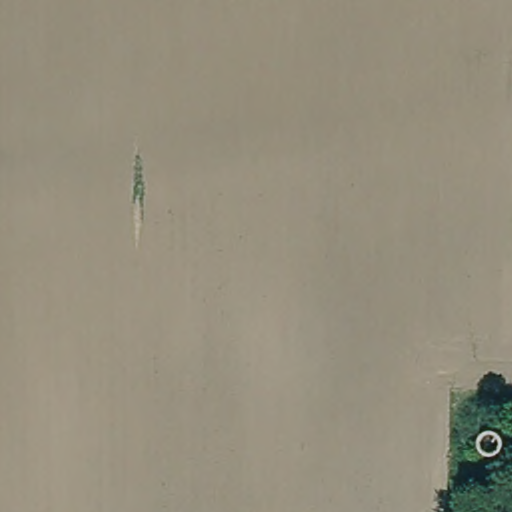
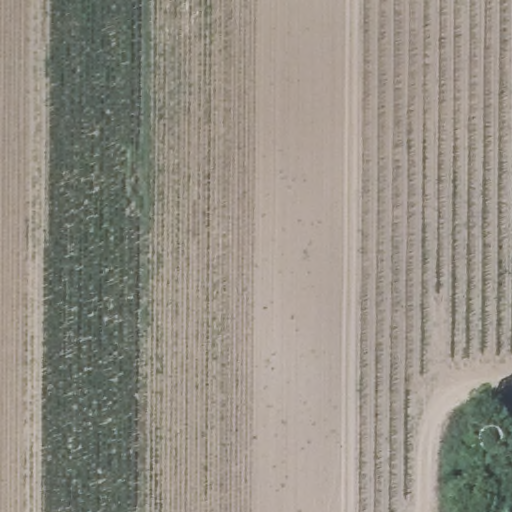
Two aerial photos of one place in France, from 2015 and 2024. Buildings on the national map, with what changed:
unchanged [(484,435),(487,430),(491,426),(498,426),(503,429),(506,433),(506,441),(503,445),(500,448),(494,448),(489,447),(485,443),(484,440),(484,435)]

